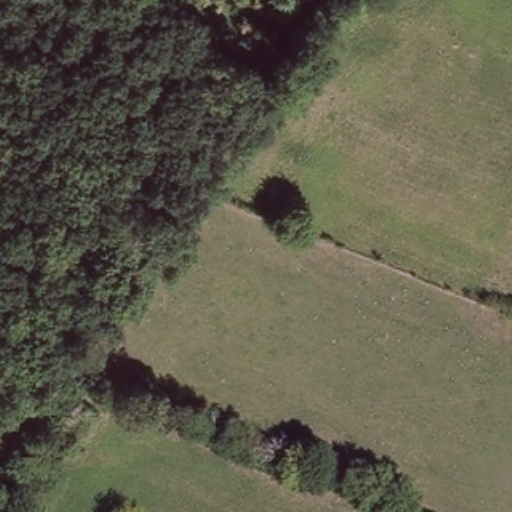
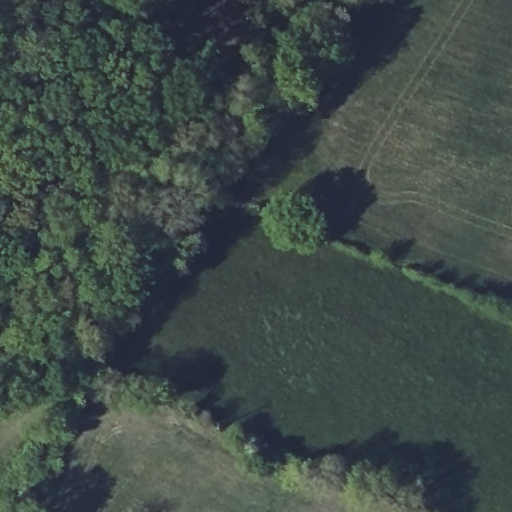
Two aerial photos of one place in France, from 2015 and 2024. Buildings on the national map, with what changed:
[]

